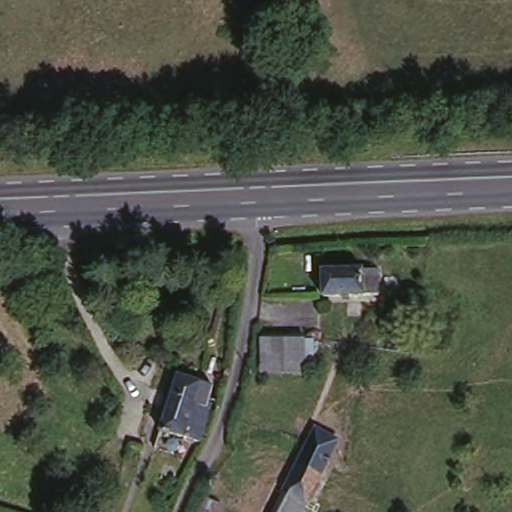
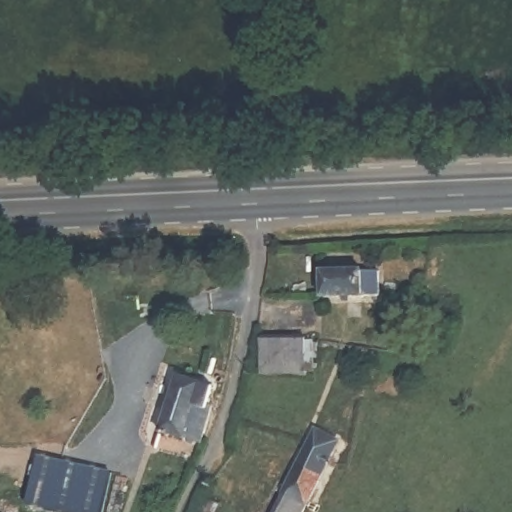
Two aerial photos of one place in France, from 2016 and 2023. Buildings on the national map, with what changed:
unchanged [(383,266),(384,292),(327,290),(328,265),(383,266)]
unchanged [(307,337),(308,375),(264,375),(263,338),(307,337)]
unchanged [(210,381),(207,395),(211,396),(199,438),(159,426),(175,372),(210,381)]
unchanged [(300,512),(269,512),(314,424),(338,435),(300,512)]
new [(102,512),(64,512),(29,504),(38,456),(109,472),(102,512)]

